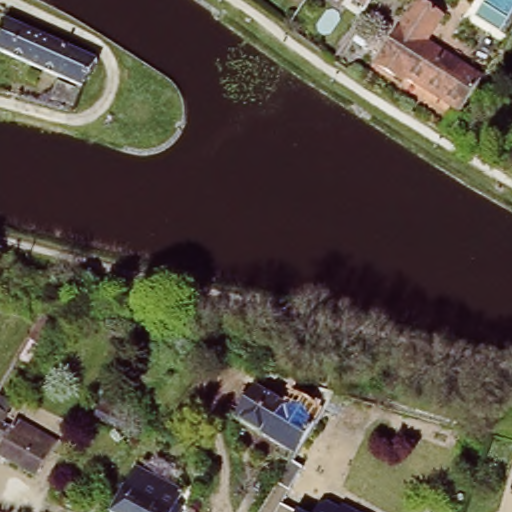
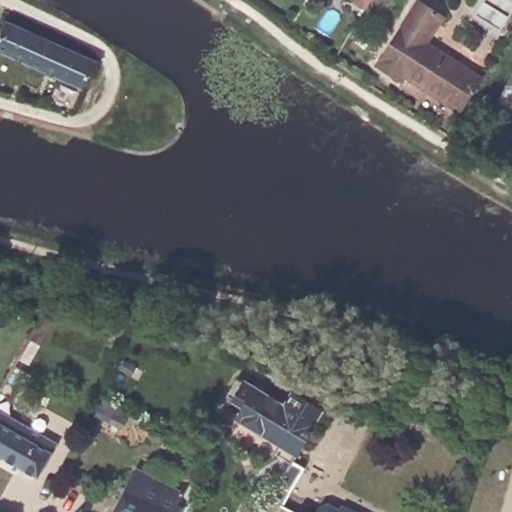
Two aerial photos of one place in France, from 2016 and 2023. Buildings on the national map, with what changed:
unchanged [(409,70),(404,76),(385,64),(404,34),(425,0),(428,0),(446,11),(423,45),(481,81),(466,106),(409,70)]
unchanged [(98,63),(81,88),(0,51),(0,29),(4,19),(13,23),(98,63)]
unchanged [(54,82),(78,92),(69,112),(45,105),(54,82)]
unchanged [(308,436),(301,446),(296,443),(289,455),(274,447),(279,439),(232,411),(251,378),(314,415),(306,428),(304,430),(309,434),(308,436)]
unchanged [(0,442),(0,411),(5,415),(0,425),(9,429),(14,420),(39,433),(57,443),(36,477),(0,458),(0,442)]
unchanged [(170,512),(112,512),(134,465),(182,487),(170,512)]
unchanged [(274,490),(281,478),(286,481),(284,486),(287,488),(279,502),(296,512),(261,512),(274,490)]
unchanged [(315,505),(322,503),(340,512),(311,512),(315,505)]

